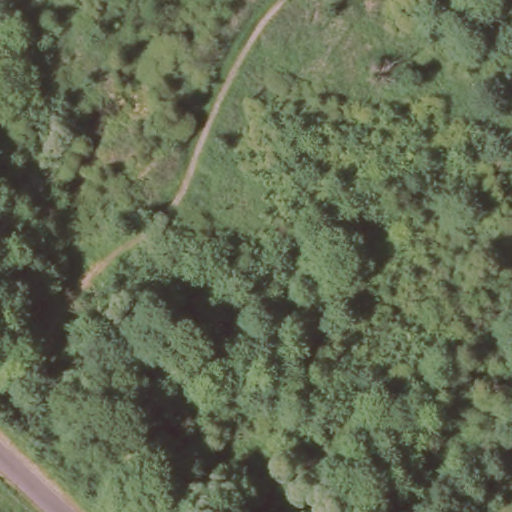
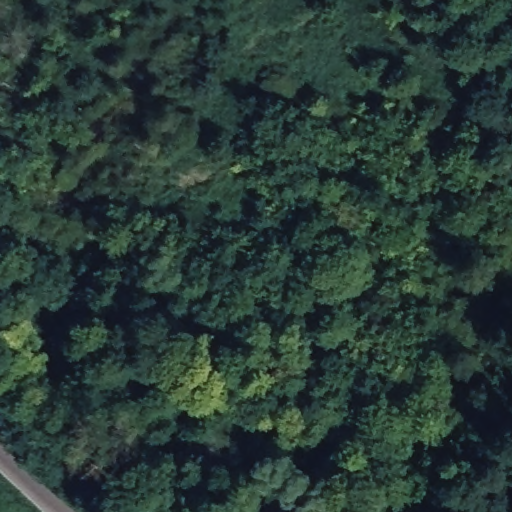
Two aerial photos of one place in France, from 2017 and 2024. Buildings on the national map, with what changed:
[]

